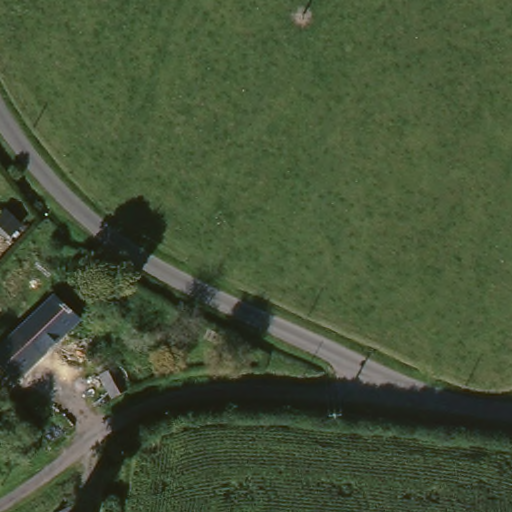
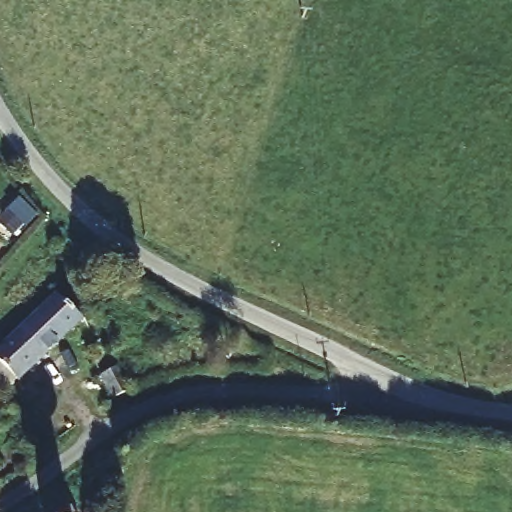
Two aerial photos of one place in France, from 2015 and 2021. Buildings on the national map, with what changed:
unchanged [(0,393),(0,351),(41,312),(60,294),(82,314),(87,319),(97,329),(82,344),(71,333),(67,336),(21,381),(5,398),(0,393)]
unchanged [(100,375),(117,367),(129,390),(114,398),(100,375)]

